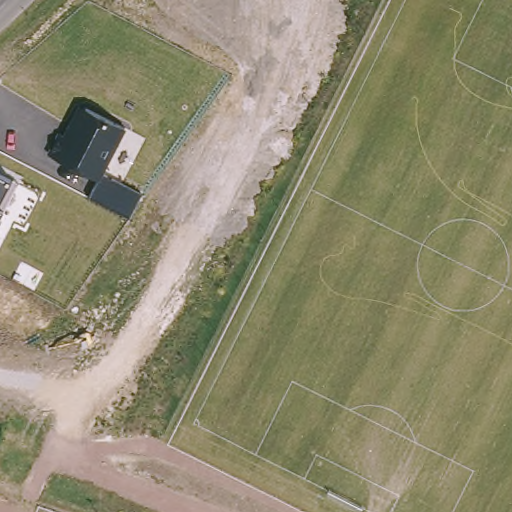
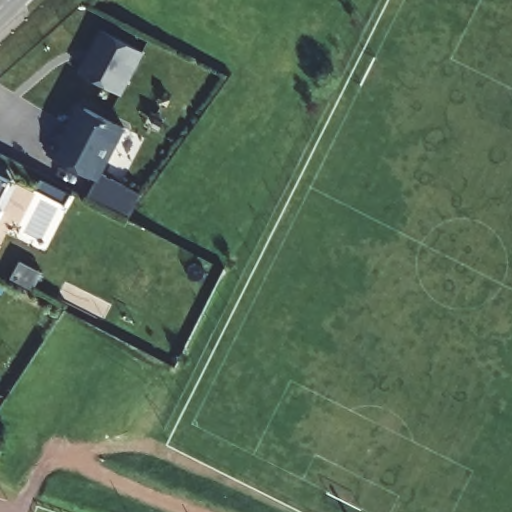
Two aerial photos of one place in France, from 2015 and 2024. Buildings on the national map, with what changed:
new [(145,57),(124,96),(79,74),(100,34),(145,57)]
unchanged [(127,128),(104,174),(140,192),(128,217),(88,197),(97,178),(46,153),(58,127),(67,131),(79,104),(127,128)]
unchanged [(13,178),(0,206),(0,172),(13,178)]
unchanged [(4,213),(0,220),(0,211),(4,213)]

